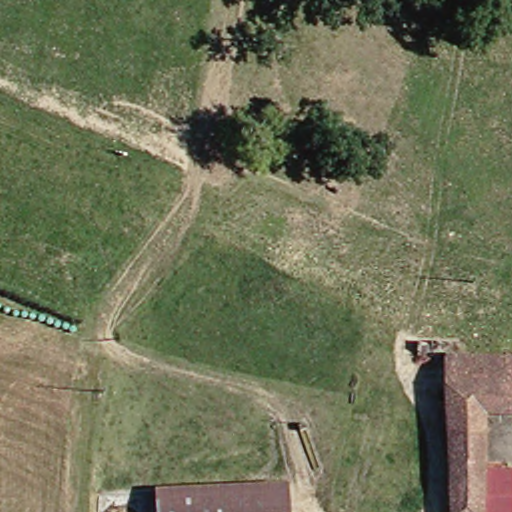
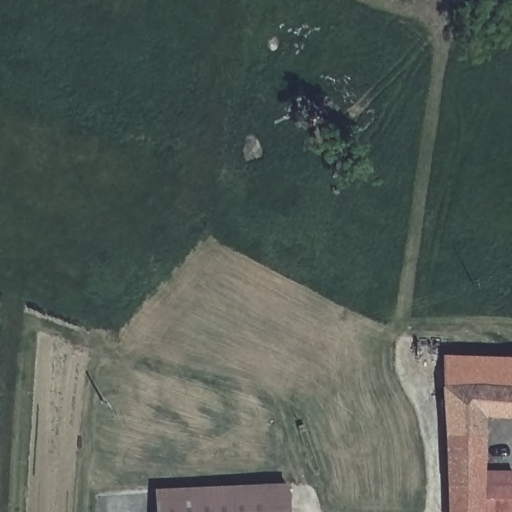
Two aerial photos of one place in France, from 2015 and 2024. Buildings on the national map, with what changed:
unchanged [(512,467),(512,512),(455,512),(456,356),(433,355),(433,336),(474,339),(474,355),(512,356),(512,417),(491,416),(490,467),(512,467)]
unchanged [(294,512),(168,512),(167,491),(294,485),(294,512)]

